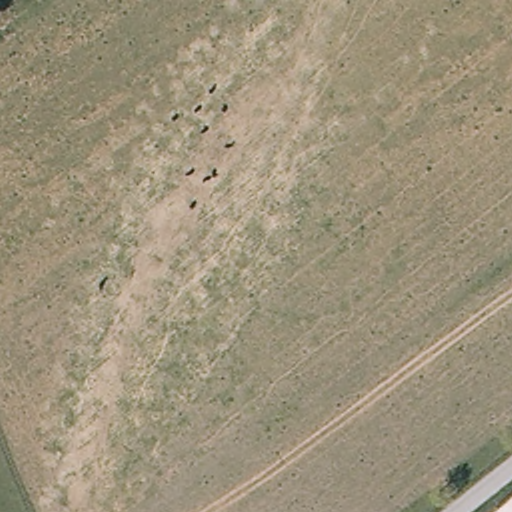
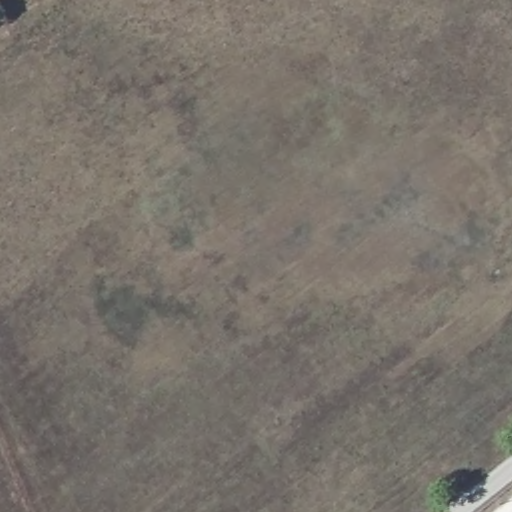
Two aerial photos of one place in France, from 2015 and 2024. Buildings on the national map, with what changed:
[]

